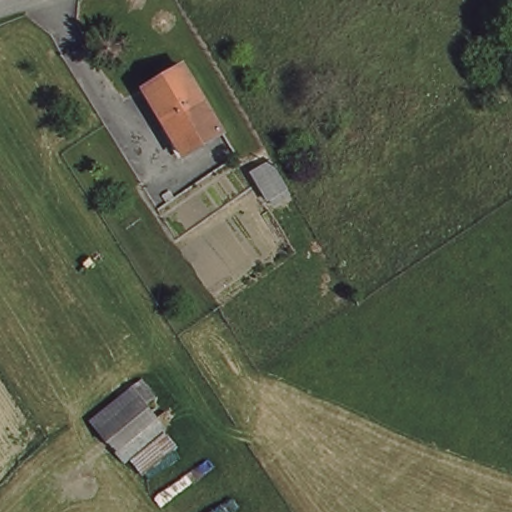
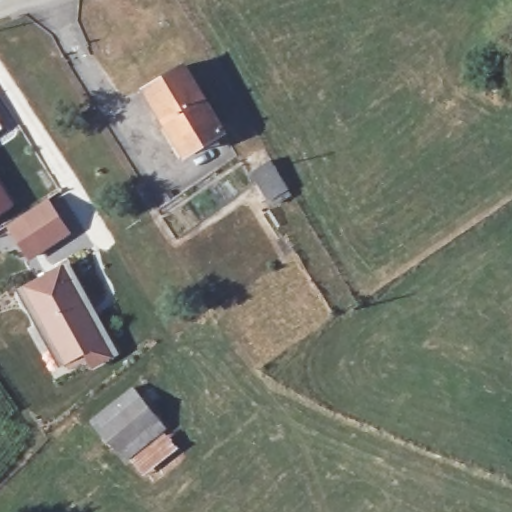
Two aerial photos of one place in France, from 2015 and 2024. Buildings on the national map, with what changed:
unchanged [(223,135),(186,156),(175,140),(146,91),(184,69),(223,135)]
new [(2,127),(0,128),(0,125),(2,127)]
unchanged [(292,190),(274,200),(261,175),(276,165),(292,190)]
new [(14,205),(0,213),(0,183),(14,205)]
new [(28,220),(51,205),(71,239),(48,252),(33,261),(12,227),(27,217),(28,220)]
new [(65,271),(70,268),(117,358),(92,371),(84,356),(65,366),(60,368),(21,294),(26,291),(65,271)]
unchanged [(180,451),(143,479),(131,459),(121,465),(86,423),(132,390),(180,451)]

